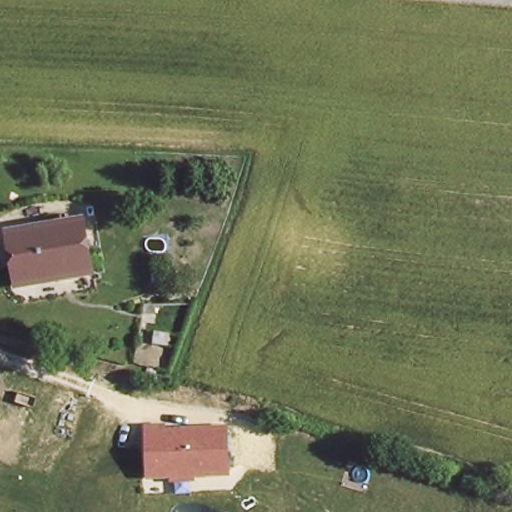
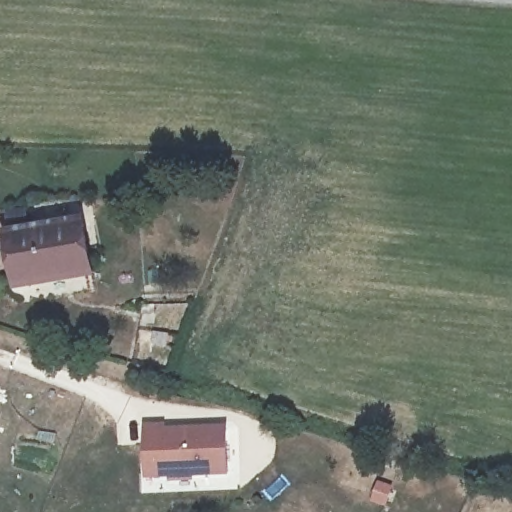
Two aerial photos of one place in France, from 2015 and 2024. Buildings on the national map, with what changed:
unchanged [(82,222),(89,270),(14,282),(7,234),(82,222)]
unchanged [(146,480),(143,425),(226,422),(229,476),(146,480)]

